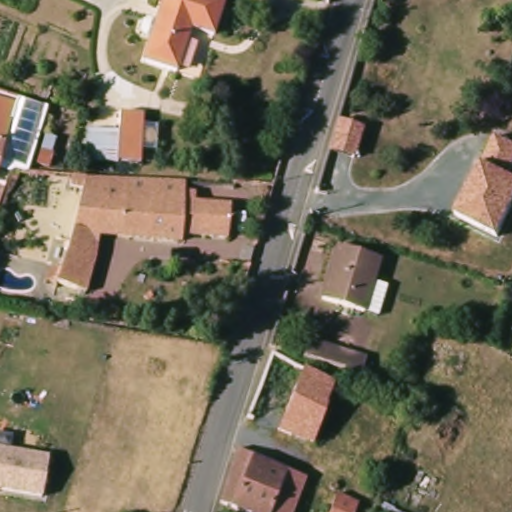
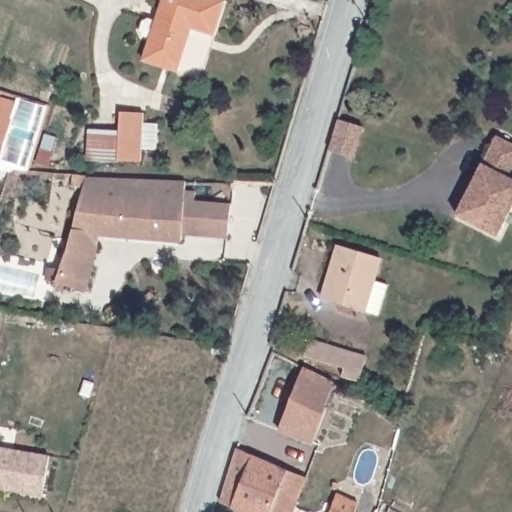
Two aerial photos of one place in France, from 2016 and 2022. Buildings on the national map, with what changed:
unchanged [(146,35),(149,26),(154,24),(162,26),(170,5),(161,1),(162,0),(216,0),(230,5),(217,40),(195,32),(180,76),(149,65),(156,43),(149,41),(146,35)]
unchanged [(30,108),(19,141),(9,145),(0,170),(0,98),(30,108)]
unchanged [(140,163),(88,161),(88,131),(116,132),(118,115),(144,117),(140,163)]
unchanged [(328,151),(338,120),(365,127),(355,159),(328,151)]
unchanged [(483,161),(496,136),(512,144),(512,174),(510,177),(512,178),(512,208),(497,235),(457,214),(483,161)]
unchanged [(45,168),(34,165),(38,152),(49,156),(45,168)]
unchanged [(125,236),(107,235),(79,233),(87,191),(75,190),(75,179),(89,180),(130,182),(125,236)]
unchanged [(175,184),(187,185),(187,193),(198,194),(197,201),(232,203),(230,235),(186,233),(186,241),(125,236),(130,182),(175,184)]
unchanged [(107,235),(100,263),(90,296),(60,289),(79,233),(107,235)]
unchanged [(377,315),(363,311),(322,299),(337,245),(378,257),(371,280),(385,284),(377,315)]
unchanged [(358,394),(328,385),(330,378),(305,371),(310,351),(365,367),(358,394)]
unchanged [(301,380),(276,442),(243,428),(270,364),(301,380)]
unchanged [(331,395),(307,455),(276,442),(301,380),(331,395)]
unchanged [(49,458),(42,498),(0,491),(0,449),(49,458)]
unchanged [(283,471),(301,479),(287,512),(234,512),(216,505),(232,449),(282,471),(283,471)]
unchanged [(354,512),(329,512),(336,493),(358,502),(354,512)]

